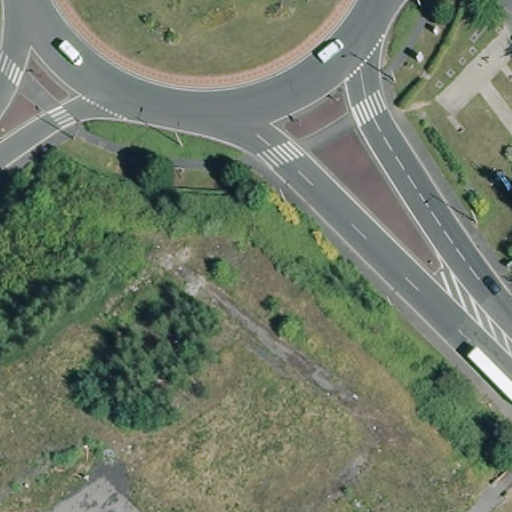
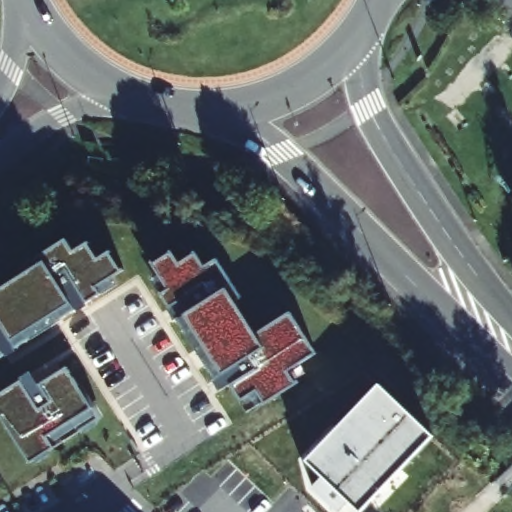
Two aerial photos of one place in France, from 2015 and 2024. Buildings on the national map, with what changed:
new [(88,241),(98,258),(110,250),(122,268),(96,286),(100,293),(61,316),(58,310),(26,331),(30,339),(0,358),(0,279),(65,239),(73,251),(88,241)]
new [(180,262),(197,252),(204,267),(217,258),(242,296),(235,298),(255,332),(290,311),(317,352),(288,370),(295,382),(263,401),(257,390),(242,400),(232,383),(220,391),(213,380),(216,377),(208,362),(214,358),(193,326),(187,330),(180,317),(175,320),(168,306),(170,305),(163,293),(170,289),(153,262),(172,251),(180,262)]
new [(98,418),(78,432),(70,420),(47,435),(54,446),(30,460),(0,410),(0,393),(20,381),(18,378),(31,370),(40,385),(67,367),(92,407),(98,418)]
new [(361,511),(350,501),(340,512),(338,512),(312,487),(322,476),(305,460),(380,382),(434,435),(361,511)]

